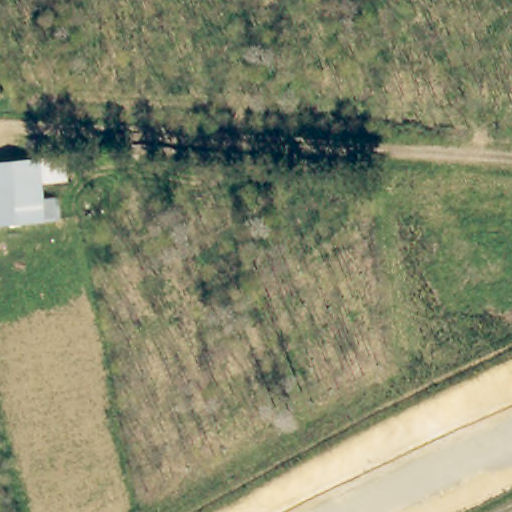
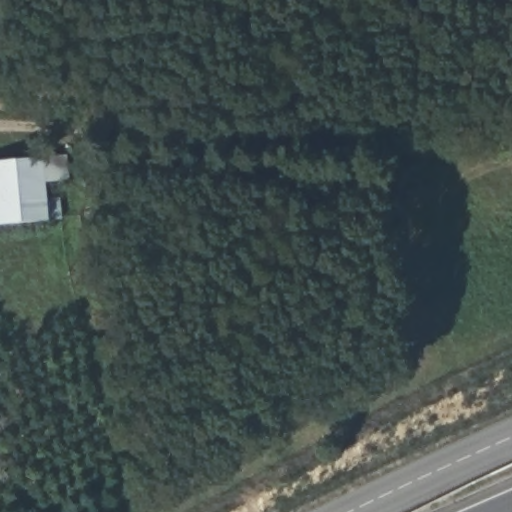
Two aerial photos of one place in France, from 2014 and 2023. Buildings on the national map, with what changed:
unchanged [(0,162),(41,156),(66,154),(68,176),(44,179),(47,222),(0,227),(0,162)]

